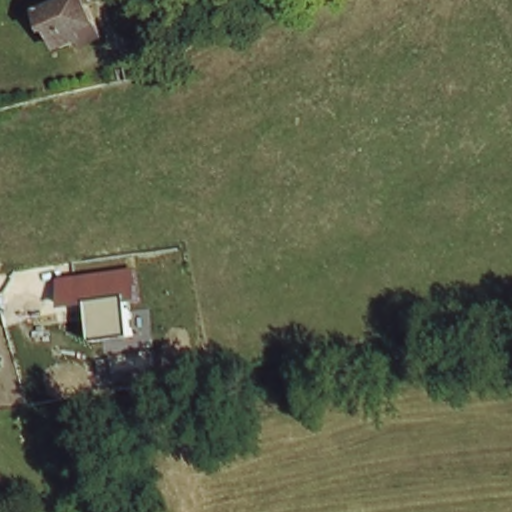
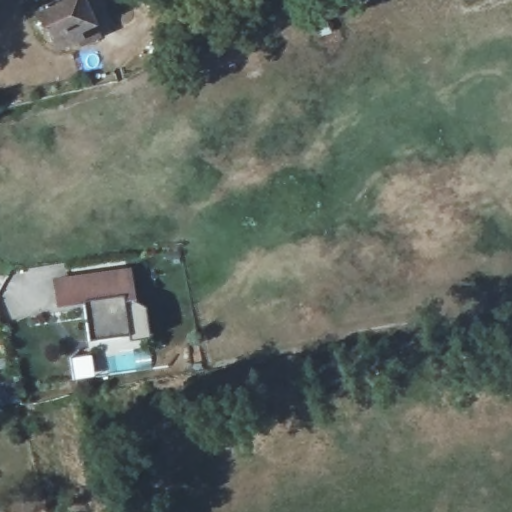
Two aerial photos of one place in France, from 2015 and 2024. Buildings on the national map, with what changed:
unchanged [(68,0),(79,0),(97,40),(78,47),(76,42),(57,50),(49,33),(44,35),(35,14),(68,0)]
unchanged [(54,275),(133,268),(137,299),(124,300),(130,334),(89,339),(82,305),(58,306),(54,275)]

